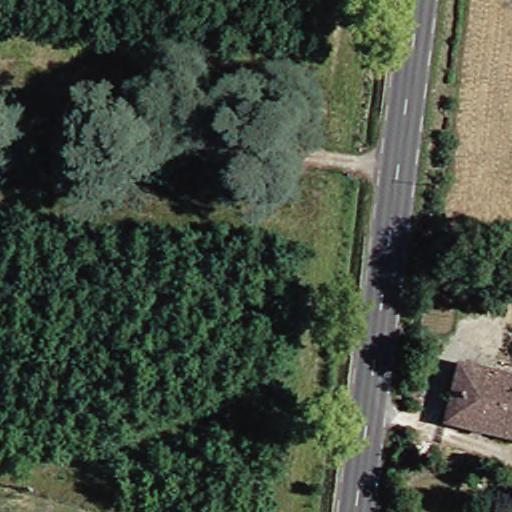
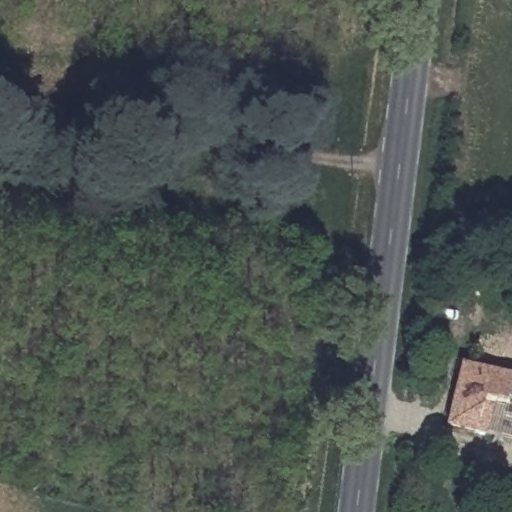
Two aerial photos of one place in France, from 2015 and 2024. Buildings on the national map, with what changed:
unchanged [(455,372),(512,385),(512,445),(441,428),(455,372)]

